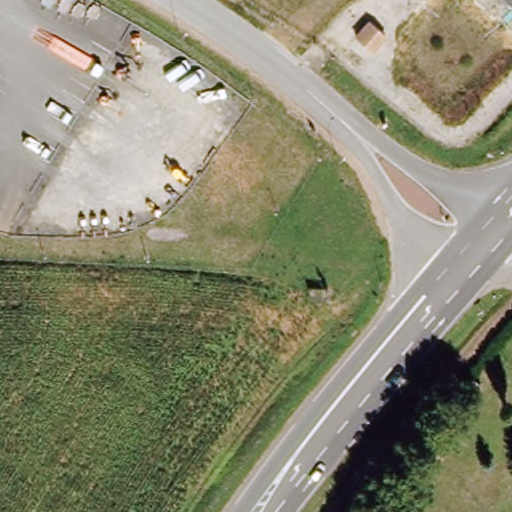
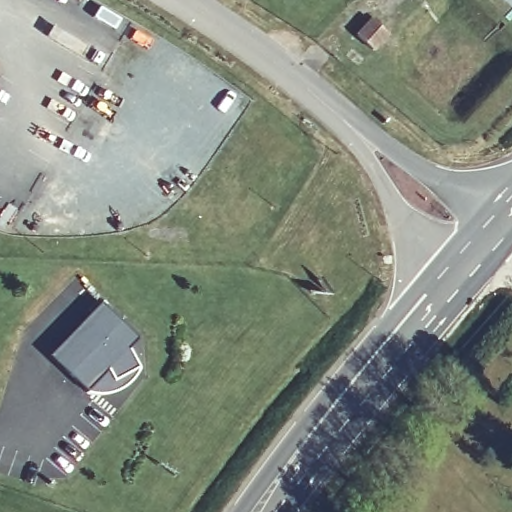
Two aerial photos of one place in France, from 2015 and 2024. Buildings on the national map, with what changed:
unchanged [(380,53),(356,33),(371,20),(394,38),(380,53)]
new [(130,348),(140,369),(128,385),(115,392),(102,394),(89,392),(48,356),(101,301),(137,337),(130,348)]

